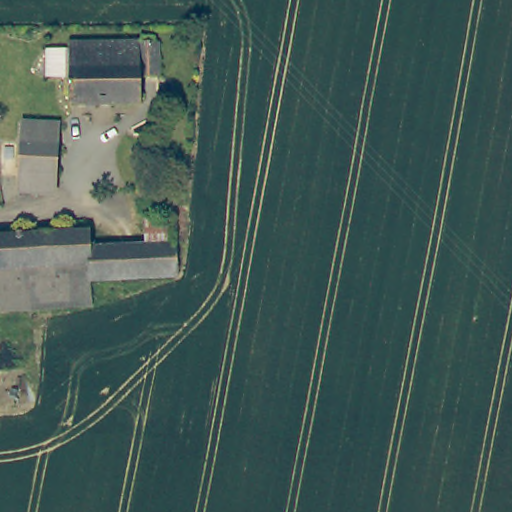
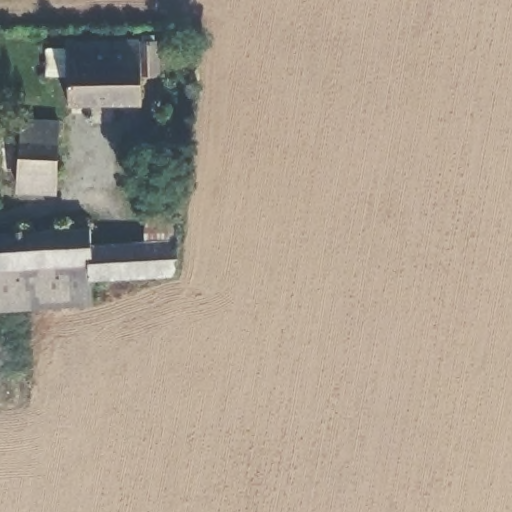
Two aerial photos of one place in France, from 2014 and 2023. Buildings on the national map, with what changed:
unchanged [(63,40),(135,42),(136,37),(147,37),(147,42),(151,42),(151,77),(133,77),(132,104),(100,102),(62,102),(63,40)]
unchanged [(13,192),(15,174),(14,174),(19,121),(55,124),(50,177),(49,177),(49,180),(47,195),(13,192)]
unchanged [(92,277),(92,245),(147,244),(147,219),(175,219),(175,244),(177,244),(177,277),(92,277)]
unchanged [(91,303),(0,305),(0,228),(41,228),(92,227),(92,245),(92,277),(91,303)]

